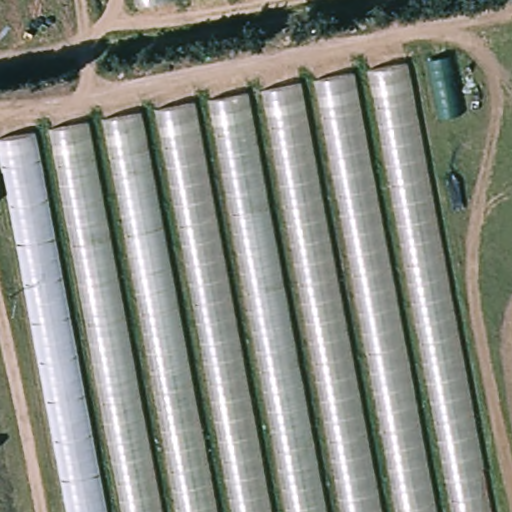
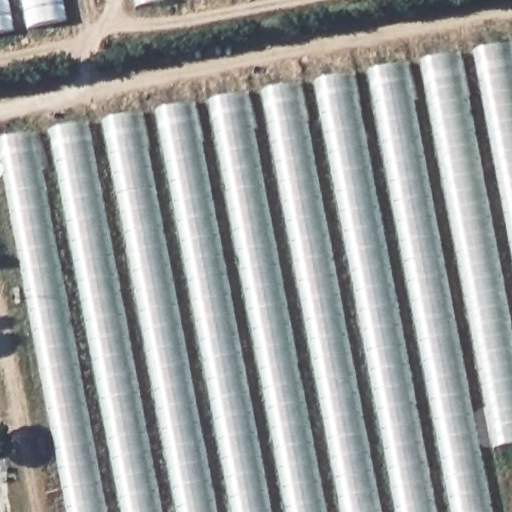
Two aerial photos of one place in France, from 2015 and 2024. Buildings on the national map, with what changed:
new [(69,21),(0,35),(0,0),(65,0),(69,21)]
unchanged [(135,5),(134,0),(161,0),(135,5)]
new [(512,42),(512,446),(494,449),(420,60),(512,42)]
unchanged [(0,138),(411,60),(493,512),(67,512),(0,154),(0,138)]

